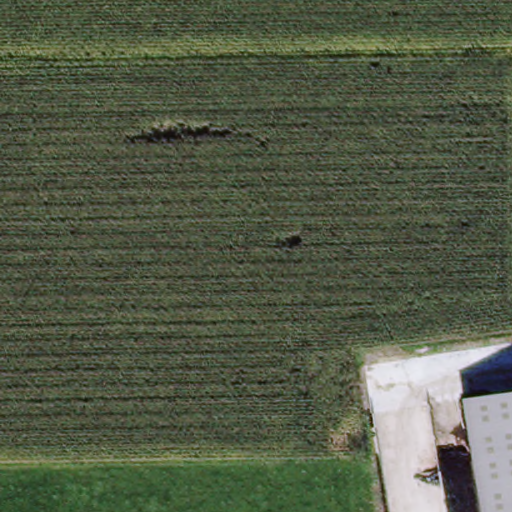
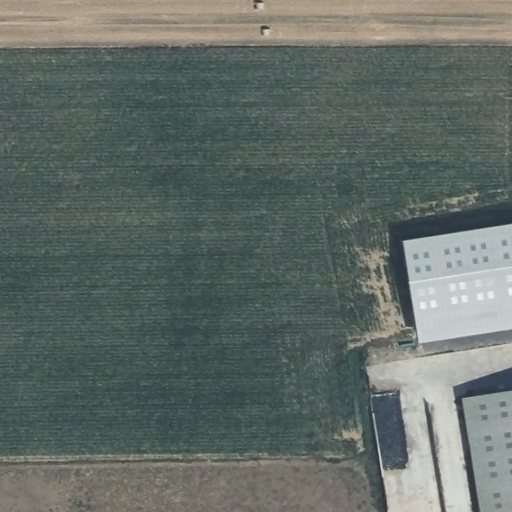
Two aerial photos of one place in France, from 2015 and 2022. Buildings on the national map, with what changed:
new [(512,329),(417,343),(405,240),(512,224),(512,329)]
unchanged [(512,512),(483,512),(465,400),(512,392),(512,512)]

